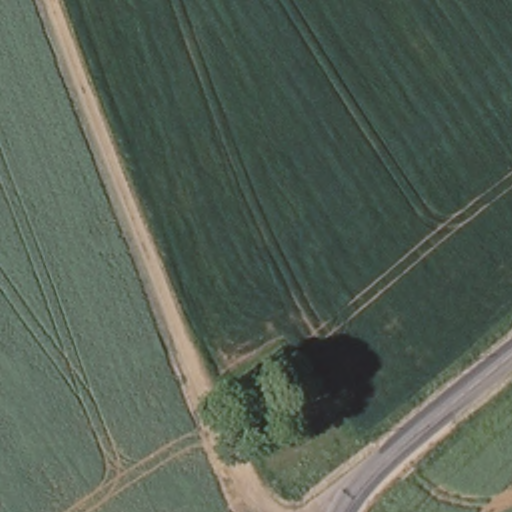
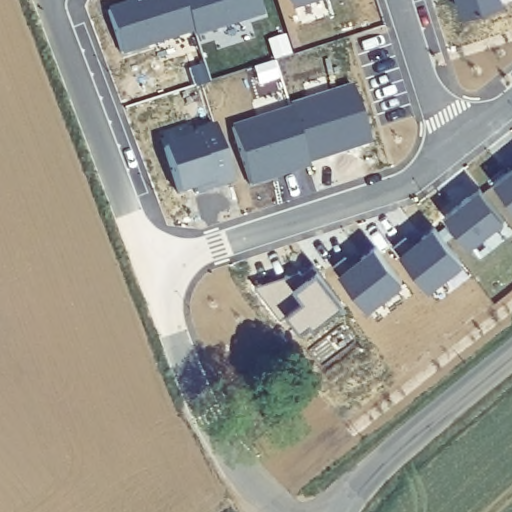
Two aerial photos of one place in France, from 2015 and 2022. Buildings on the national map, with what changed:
new [(154,0),(183,0),(193,34),(122,57),(108,14),(154,0)]
new [(264,17),(195,39),(193,34),(183,0),(259,0),(264,17)]
new [(296,8),(293,0),(320,0),(296,8)]
new [(503,6),(465,18),(459,0),(501,0),(503,6)]
new [(354,89),(370,141),(366,147),(358,150),(351,147),(328,154),(329,159),(309,166),(292,112),(291,109),(354,89)]
new [(292,112),(309,166),(310,169),(251,188),(233,131),(292,112)]
new [(197,142),(195,136),(216,129),(234,185),(196,197),(195,192),(178,197),(164,152),(197,142)]
new [(512,171),(512,206),(495,184),(512,171)]
new [(481,190),(505,222),(471,249),(446,218),(481,190)]
new [(438,223),(467,258),(434,284),(405,248),(438,223)]
new [(379,241),(407,277),(373,303),(346,267),(379,241)]
new [(299,269),(307,278),(324,266),(349,299),(319,321),(315,316),(304,324),(293,308),(280,315),(259,283),(299,269)]

